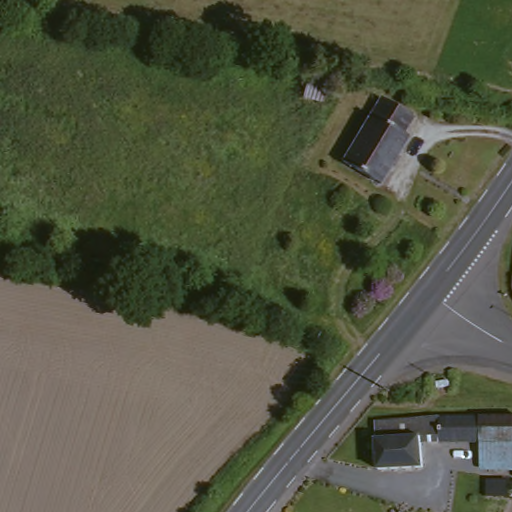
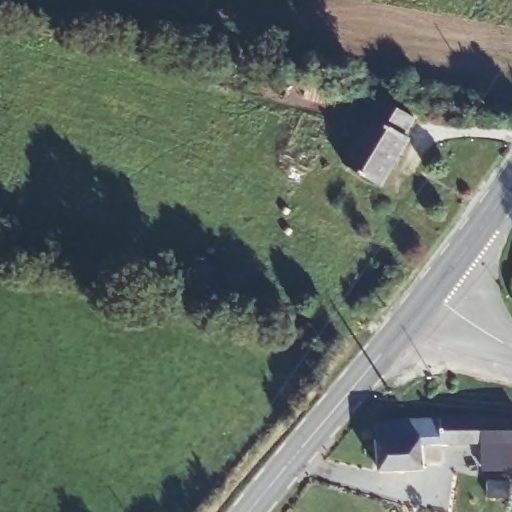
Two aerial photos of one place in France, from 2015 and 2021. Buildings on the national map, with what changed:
unchanged [(406,122),(396,138),(402,145),(374,190),(338,164),(378,101),(406,122)]
unchanged [(480,421),(512,420),(512,469),(495,468),(479,467),(478,447),(480,421)]
unchanged [(478,447),(416,445),(418,472),(378,475),(378,423),(480,421),(478,447)]

